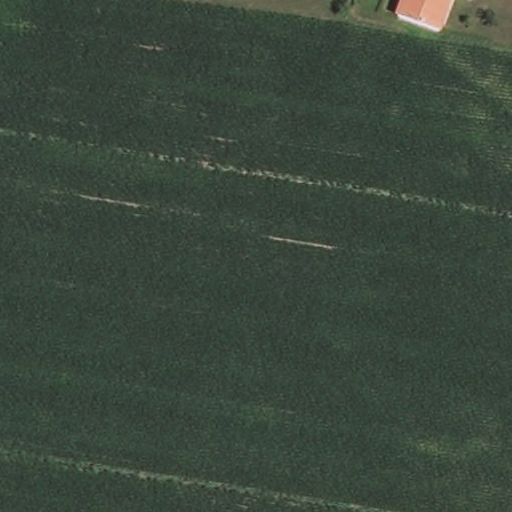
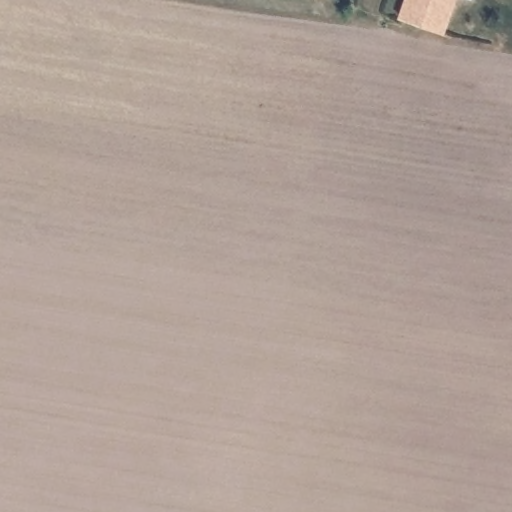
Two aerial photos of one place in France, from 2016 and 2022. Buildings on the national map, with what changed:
unchanged [(442,0),(431,29),(392,14),(397,0),(442,0)]

